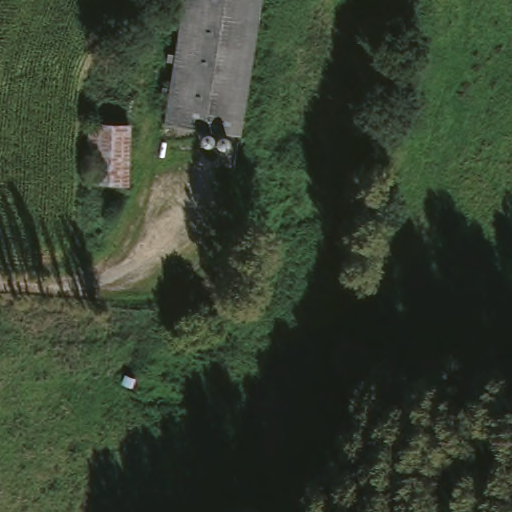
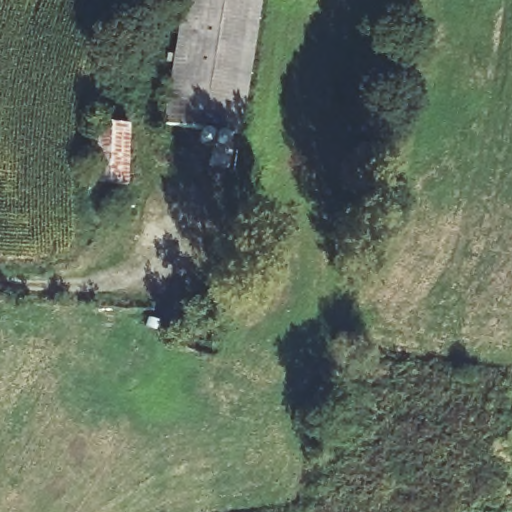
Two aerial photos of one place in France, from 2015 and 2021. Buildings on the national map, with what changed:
unchanged [(237,130),(172,120),(191,0),(257,0),(237,130)]
unchanged [(246,132),(237,130),(257,0),(267,0),(246,132)]
unchanged [(94,185),(96,116),(140,117),(135,187),(94,185)]

